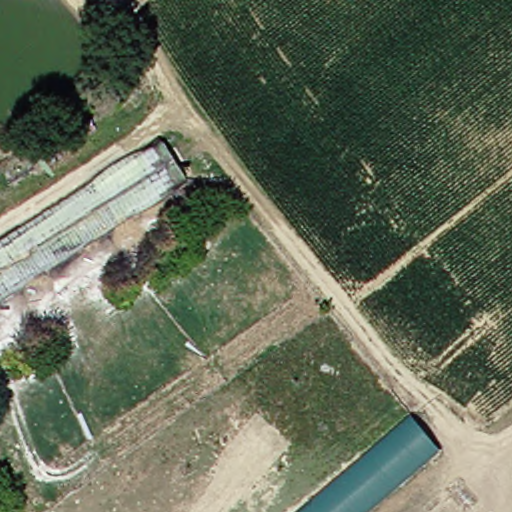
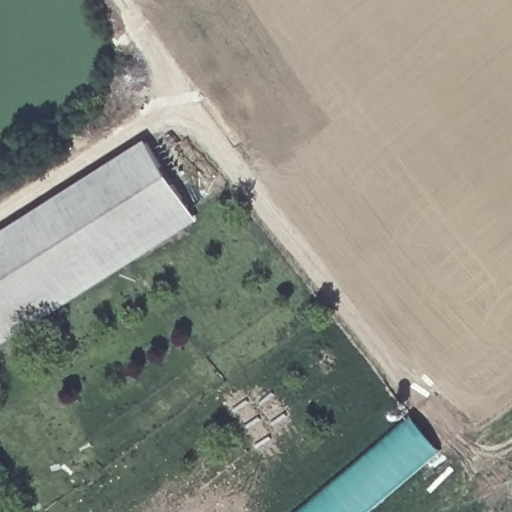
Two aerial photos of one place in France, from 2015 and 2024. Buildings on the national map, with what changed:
new [(197,221),(0,345),(0,233),(145,141),(197,221)]
demolished [(125,216),(0,298),(0,245),(99,181),(125,216)]
unchanged [(448,453),(379,512),(306,512),(414,417),(448,453)]

